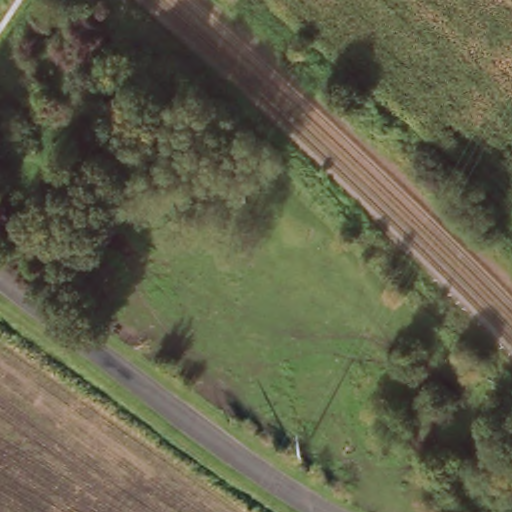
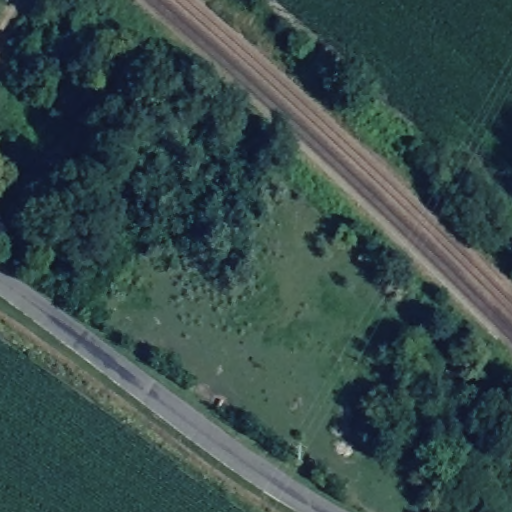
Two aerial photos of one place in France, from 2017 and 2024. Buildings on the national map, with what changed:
unchanged [(273,130),(265,138),(258,131),(265,123),(273,130)]
unchanged [(35,227),(20,245),(9,236),(25,218),(35,227)]

